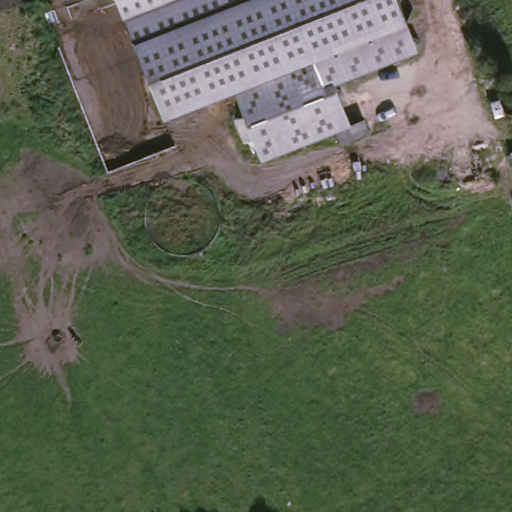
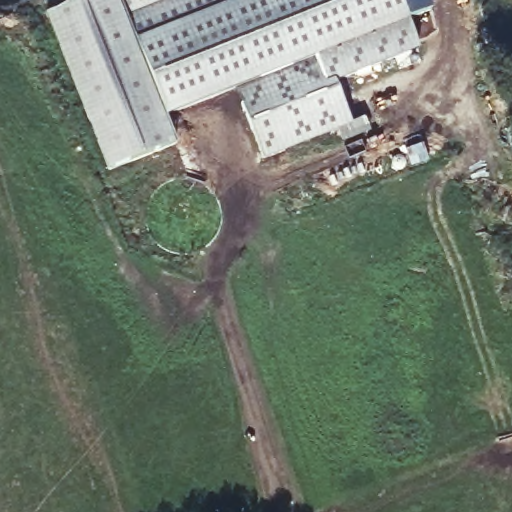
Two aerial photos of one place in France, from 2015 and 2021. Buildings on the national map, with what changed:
new [(169,116),(179,144),(107,171),(46,17),(66,7),(64,0),(175,0),(129,18),(169,116)]
unchanged [(337,80),(326,52),(237,88),(225,93),(169,116),(129,18),(175,0),(402,0),(420,47),(337,80)]
unchanged [(326,52),(337,80),(354,122),(265,157),(237,88),(326,52)]

